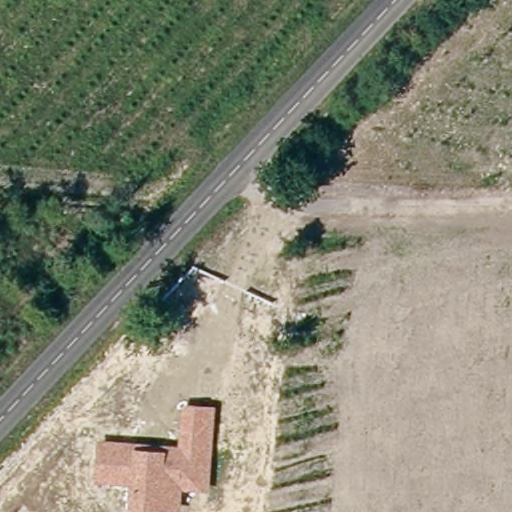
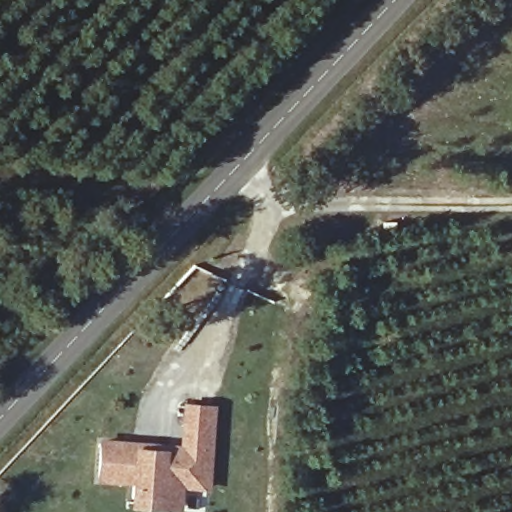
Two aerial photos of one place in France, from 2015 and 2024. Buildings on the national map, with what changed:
unchanged [(210,489),(184,489),(182,512),(177,512),(129,508),(130,484),(95,481),(97,438),(179,442),(182,403),(216,405),(210,489)]

